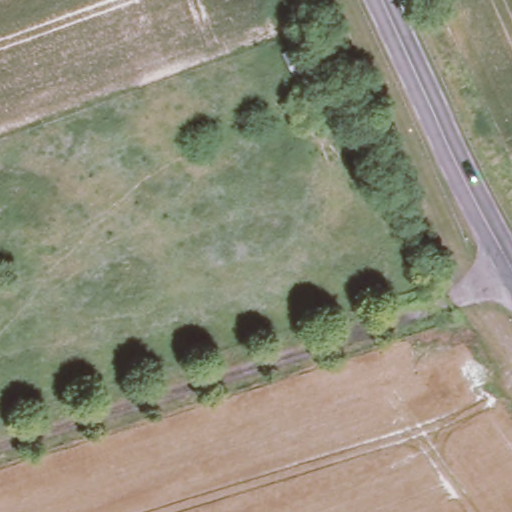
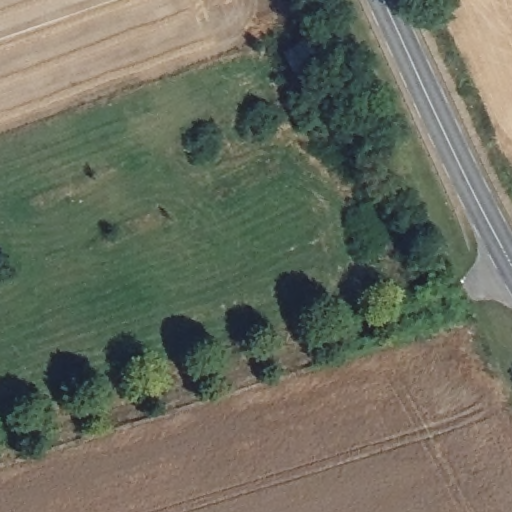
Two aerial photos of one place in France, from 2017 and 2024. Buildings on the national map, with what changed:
unchanged [(310,33),(327,66),(296,81),(280,48),(310,33)]

